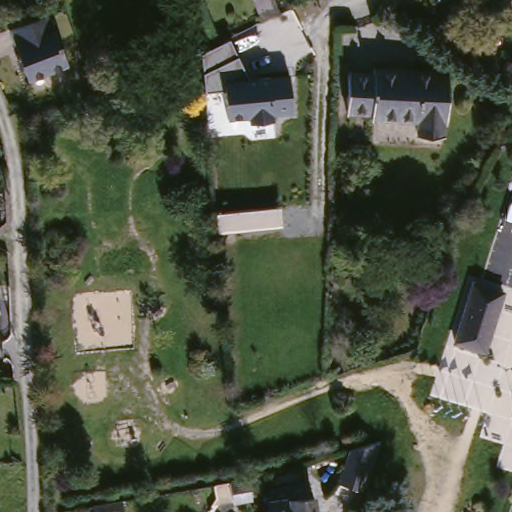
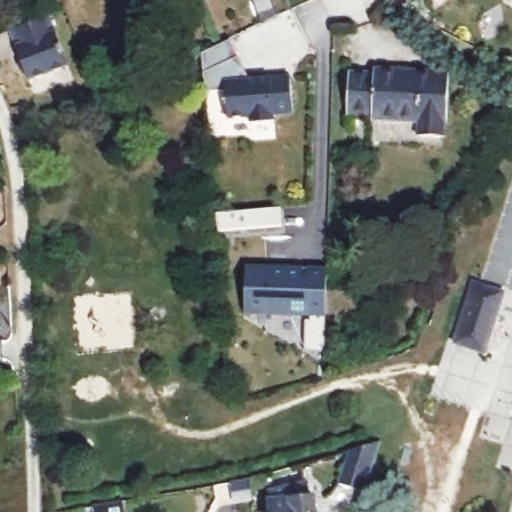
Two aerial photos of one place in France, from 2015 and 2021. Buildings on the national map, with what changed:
unchanged [(278,15),(264,21),(256,0),(272,0),(278,15)]
unchanged [(70,65),(30,80),(12,30),(51,15),(70,65)]
unchanged [(247,118),(226,121),(222,89),(204,91),(201,53),(231,40),(250,77),(291,75),(295,114),(272,116),(273,121),(248,124),(247,118)]
unchanged [(443,121),(441,121),(440,136),(416,135),(417,121),(369,119),(369,114),(345,112),(346,72),(371,74),(371,69),(445,71),(443,121)]
unchanged [(280,207),(284,207),(286,226),(281,226),(229,231),(221,232),(220,212),(227,212),(280,207)]
new [(252,313),(252,267),(327,268),(325,317),(252,313)]
unchanged [(499,291),(482,351),(450,341),(467,282),(499,291)]
unchanged [(0,315),(1,327),(0,328),(0,315)]
unchanged [(17,394),(0,394),(0,383),(16,382),(17,394)]
unchanged [(366,490),(341,482),(351,450),(381,441),(382,440),(366,490)]
unchanged [(236,506),(234,500),(237,495),(234,496),(231,484),(246,481),(250,480),(252,492),(253,502),(236,506)]
unchanged [(268,501),(268,491),(305,480),(306,496),(311,496),(312,512),(267,512),(267,501),(268,501)]
unchanged [(129,512),(97,512),(97,506),(128,501),(129,512)]

